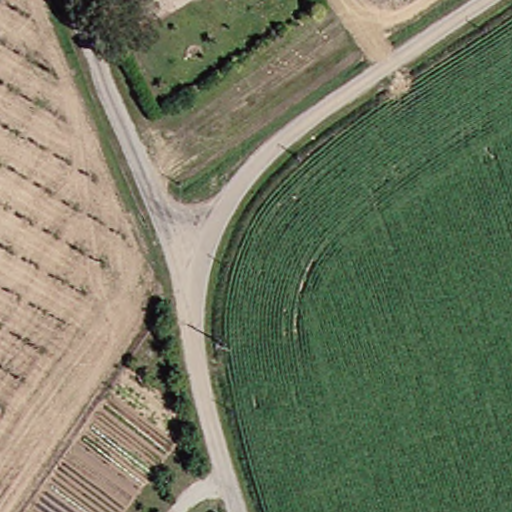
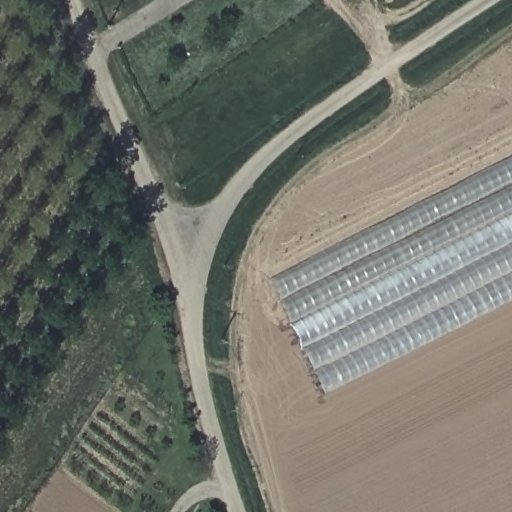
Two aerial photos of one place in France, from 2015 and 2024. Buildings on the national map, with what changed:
new [(323,393),(271,280),(512,155),(512,300),(323,393)]

